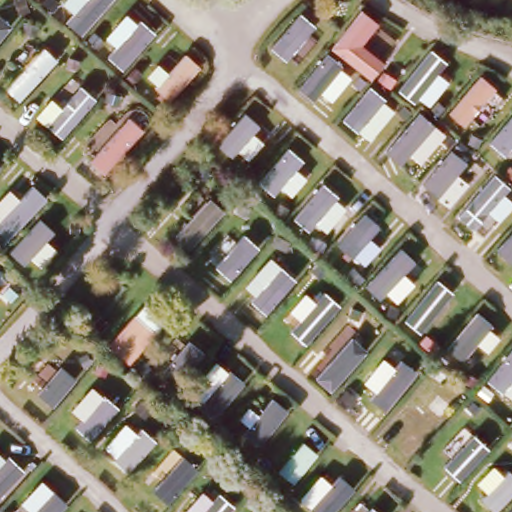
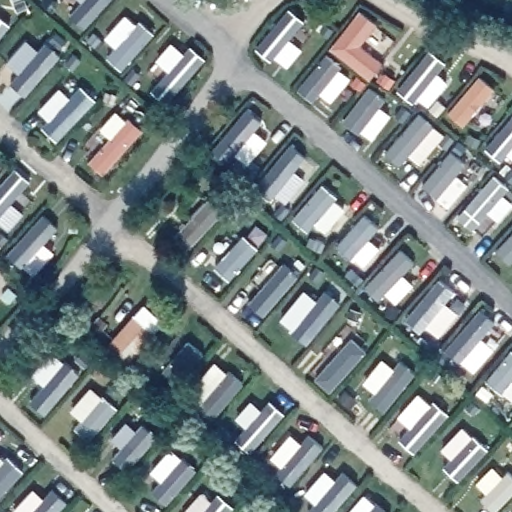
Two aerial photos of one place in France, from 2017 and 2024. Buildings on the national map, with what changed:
[]

